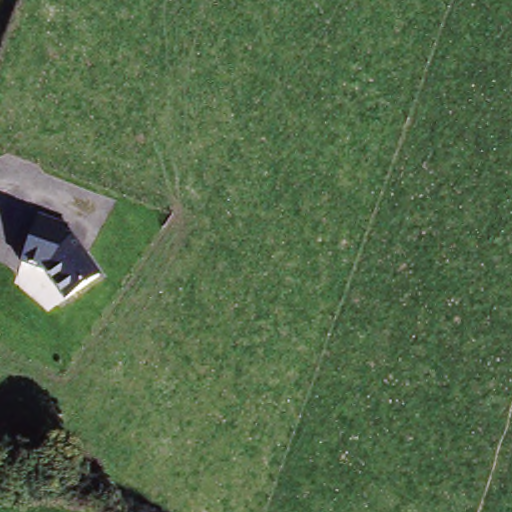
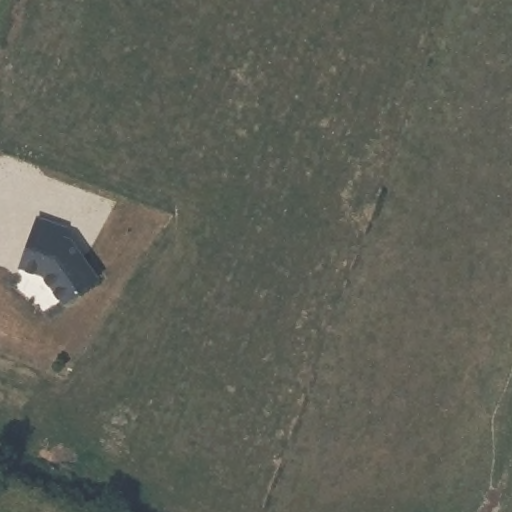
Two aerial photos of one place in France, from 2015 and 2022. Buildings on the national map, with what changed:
unchanged [(35,216),(60,233),(55,241),(62,246),(78,292),(38,305),(28,272),(6,259),(35,216)]

